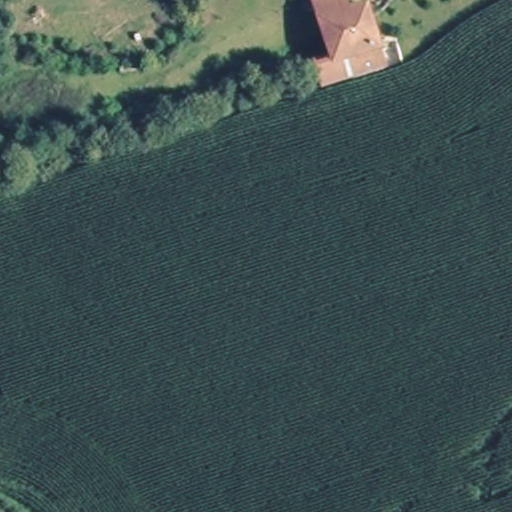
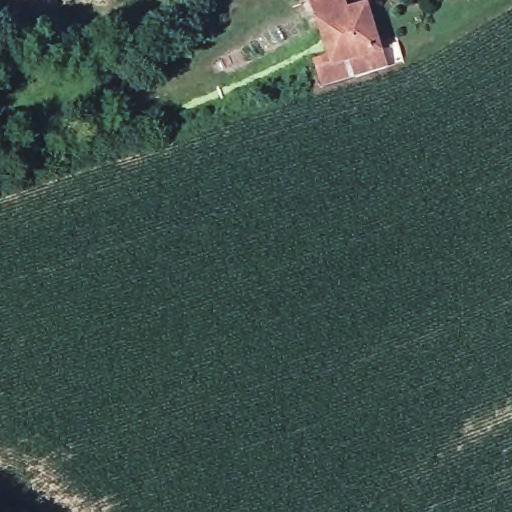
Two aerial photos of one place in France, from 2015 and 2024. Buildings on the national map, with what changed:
unchanged [(363,69),(357,50),(348,54),(346,48),(338,29),(333,16),(327,0),(348,0),(352,9),(377,1),(382,14),(388,34),(390,39),(398,59),(365,71),(363,69)]

